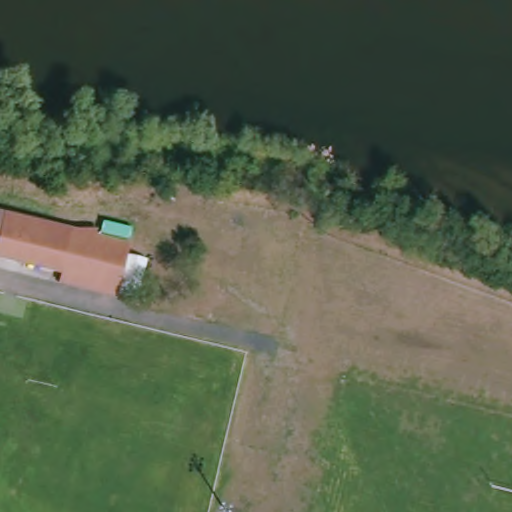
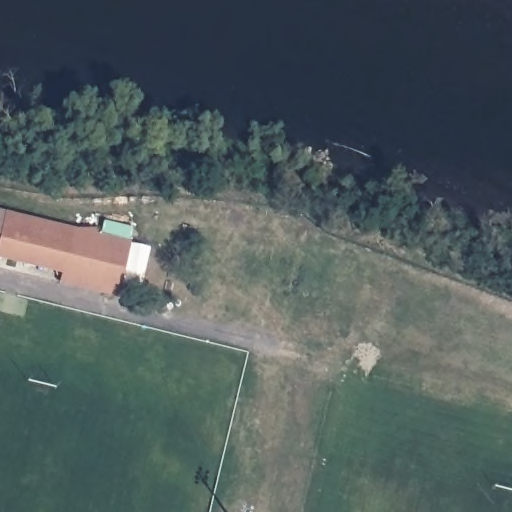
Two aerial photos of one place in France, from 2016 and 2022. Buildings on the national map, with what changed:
unchanged [(0,259),(0,213),(23,219),(27,265),(0,259)]
unchanged [(128,243),(116,295),(57,280),(59,273),(27,265),(23,219),(128,243)]

